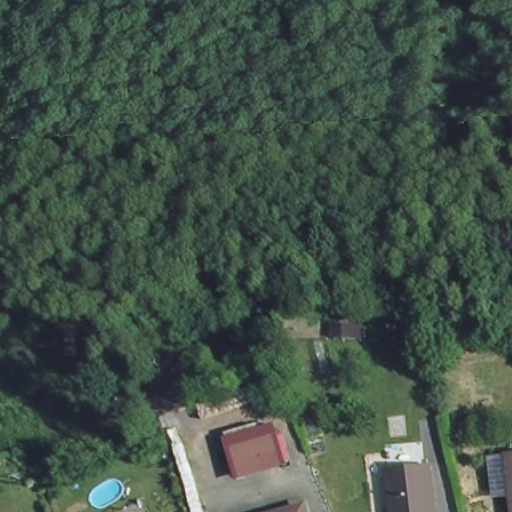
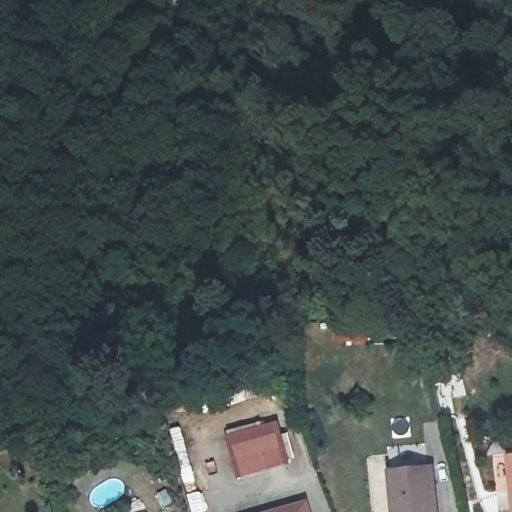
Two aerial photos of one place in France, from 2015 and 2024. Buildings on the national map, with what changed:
unchanged [(276,438),(282,461),(244,471),(237,448),(276,438)]
unchanged [(510,511),(510,491),(490,488),(491,460),(510,457),(512,457),(512,511),(510,511)]
unchanged [(436,512),(395,512),(393,477),(434,478),(436,512)]
unchanged [(306,504),(308,512),(276,512),(306,504)]

